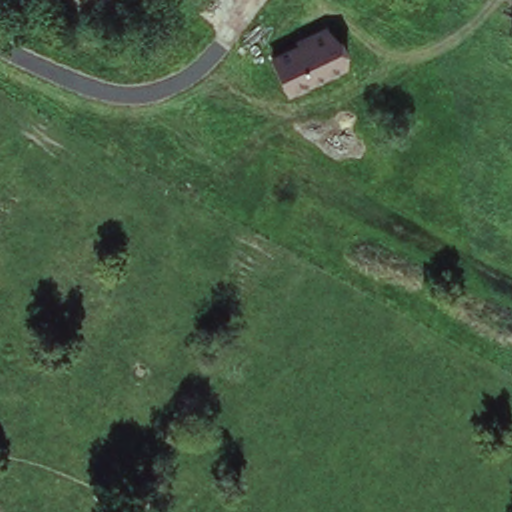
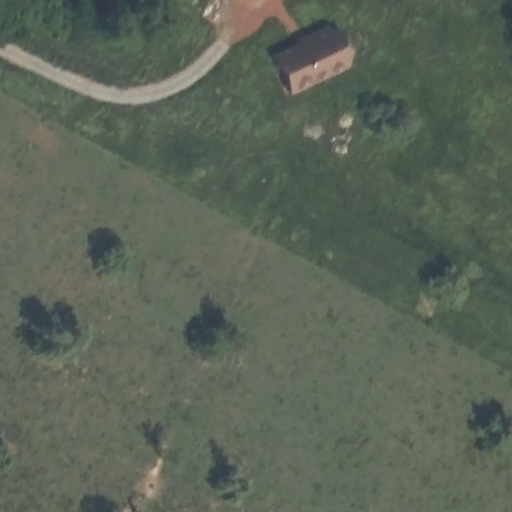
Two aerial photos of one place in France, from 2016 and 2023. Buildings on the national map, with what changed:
unchanged [(287,93),(271,55),(295,44),(292,38),(327,23),(348,66),(287,93)]

